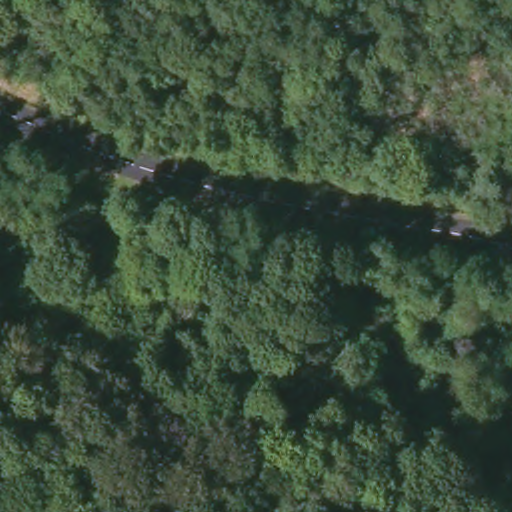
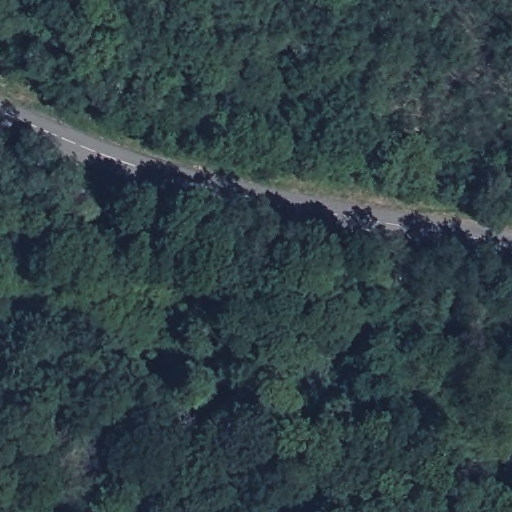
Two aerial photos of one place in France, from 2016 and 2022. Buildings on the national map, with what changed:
unchanged [(455,260),(454,282),(427,281),(428,257),(455,260)]

